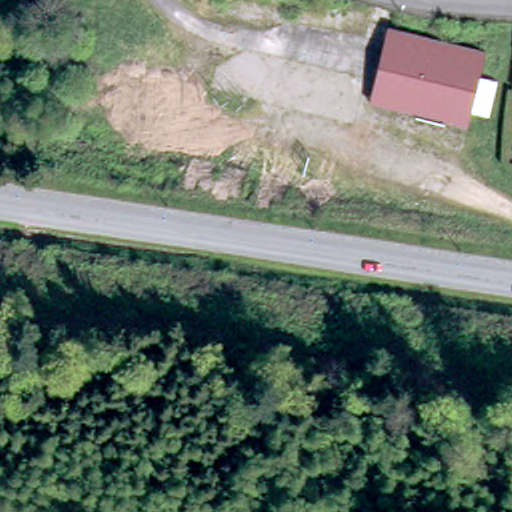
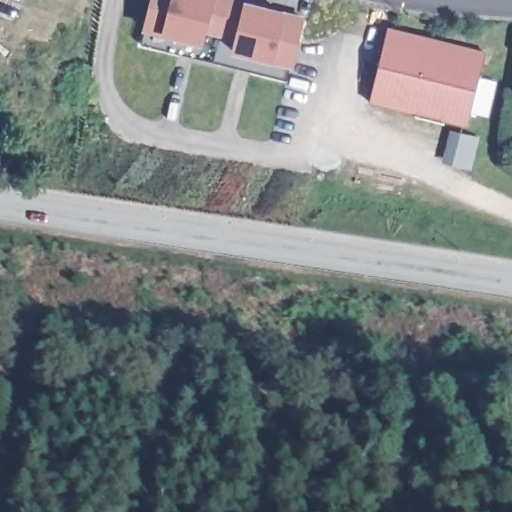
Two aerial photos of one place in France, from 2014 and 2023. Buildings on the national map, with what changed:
new [(241,0),(245,1),(287,11),(306,16),(293,66),(275,62),(234,53),(237,41),(208,35),(205,45),(164,34),(145,30),(152,0),(241,0)]
unchanged [(477,71),(495,76),(487,111),(469,106),(466,121),(369,98),(386,24),(484,46),(477,71)]
new [(164,34),(205,45),(208,35),(237,41),(234,53),(275,62),(293,66),(290,81),(142,44),(145,30),(164,34)]

